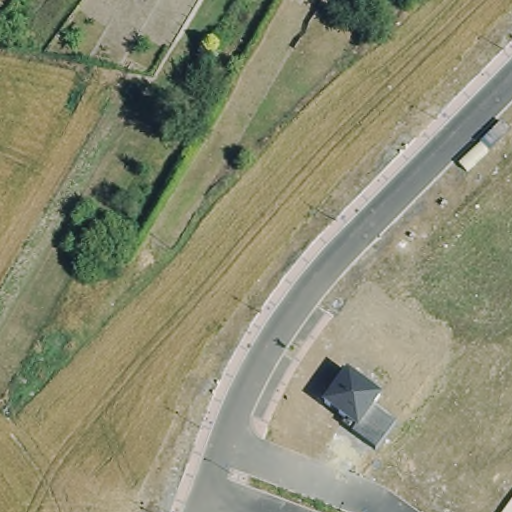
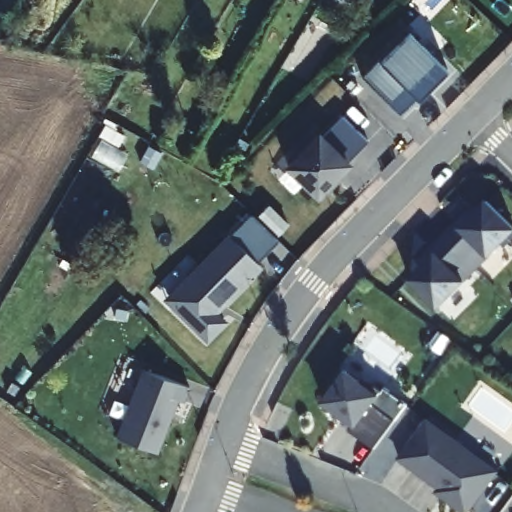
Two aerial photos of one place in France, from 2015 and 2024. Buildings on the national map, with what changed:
new [(446,69),(419,98),(417,95),(401,113),(364,74),(379,58),(382,62),(410,31),(446,69)]
new [(347,157),(351,163),(317,197),(286,164),(296,154),(292,150),(310,131),(315,134),(320,129),(325,133),(342,114),(367,139),(347,157)]
unchanged [(486,190),(512,216),(512,226),(437,301),(407,272),(486,190)]
new [(279,239),(257,260),(262,265),(219,312),(227,320),(208,341),(163,295),(227,233),(230,234),(251,212),(279,239)]
new [(186,401),(179,398),(159,452),(116,434),(142,368),(191,387),(186,401)]
unchanged [(346,369),(383,394),(375,405),(397,421),(376,449),(351,432),(355,427),(325,402),(346,369)]
new [(469,512),(463,512),(436,491),(439,487),(398,458),(428,417),(500,470),(469,512)]

